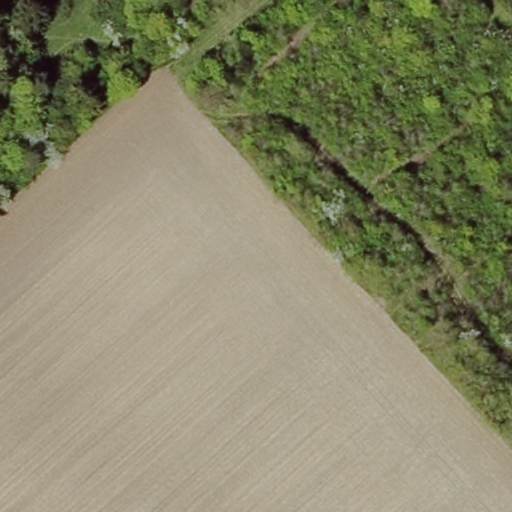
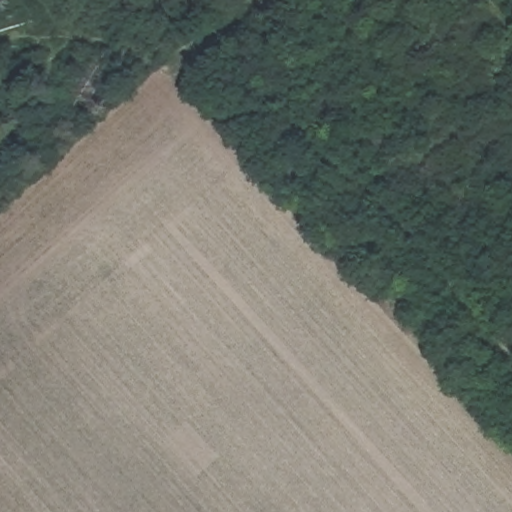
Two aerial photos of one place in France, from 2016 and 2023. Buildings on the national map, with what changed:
unchanged [(98,94),(81,104),(68,84),(84,74),(98,94)]

